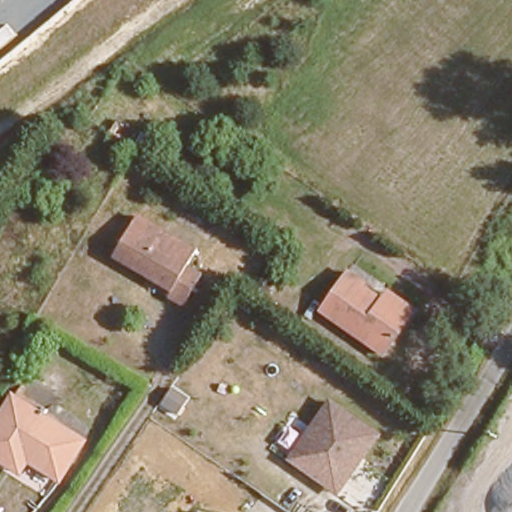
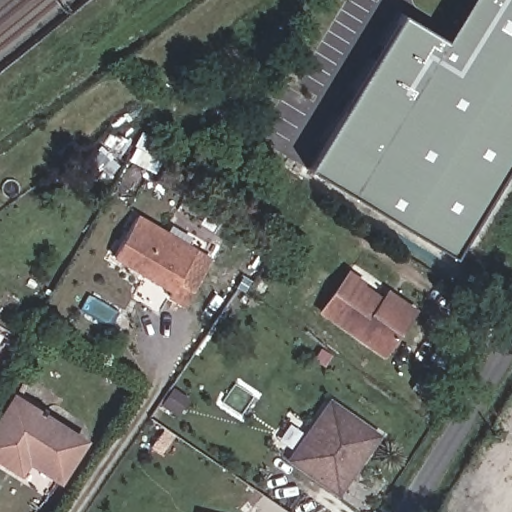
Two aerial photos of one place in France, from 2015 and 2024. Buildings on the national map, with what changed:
new [(454,41),(479,0),(512,0),(512,172),(461,257),(317,169),(408,14),(454,41)]
unchanged [(197,241),(190,255),(209,265),(183,303),(168,295),(175,285),(115,250),(138,207),(197,241)]
unchanged [(323,308),(349,272),(363,282),(361,285),(383,301),(388,294),(415,313),(409,320),(386,353),(323,308)]
unchanged [(60,475),(26,455),(20,465),(0,452),(0,412),(14,389),(87,427),(60,475)]
unchanged [(383,435),(338,498),(288,461),(332,400),(383,435)]

